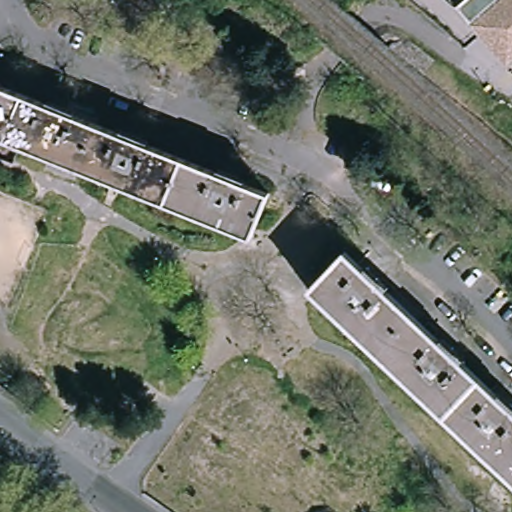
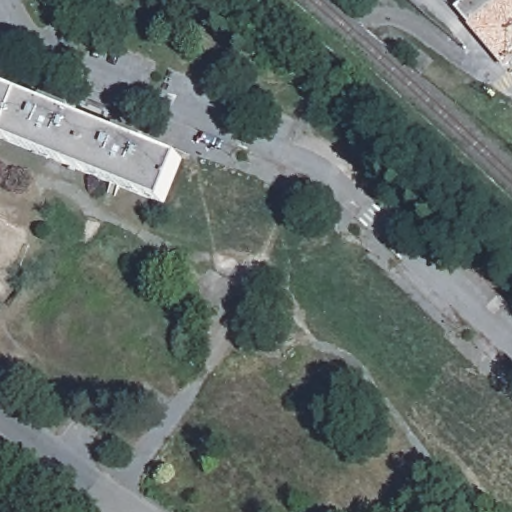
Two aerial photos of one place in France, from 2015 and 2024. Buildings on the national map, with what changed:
unchanged [(507,66),(480,35),(472,25),(457,8),(466,0),(512,0),(512,62),(507,66)]
unchanged [(5,140),(0,138),(0,85),(24,95),(5,140)]
unchanged [(5,140),(24,95),(103,127),(85,172),(5,140)]
unchanged [(183,159),(164,204),(127,189),(118,185),(85,172),(103,127),(183,159)]
demolished [(251,238),(164,204),(183,159),(228,177),(269,193),(251,238)]
demolished [(411,314),(375,352),(309,290),(345,252),(411,314)]
demolished [(411,314),(479,378),(443,416),(375,352),(411,314)]
unchanged [(512,410),(512,459),(501,471),(443,416),(479,378),(512,410)]
unchanged [(512,459),(512,482),(501,471),(512,459)]

